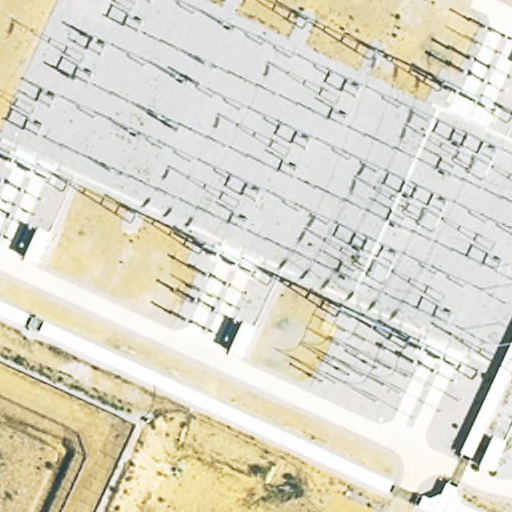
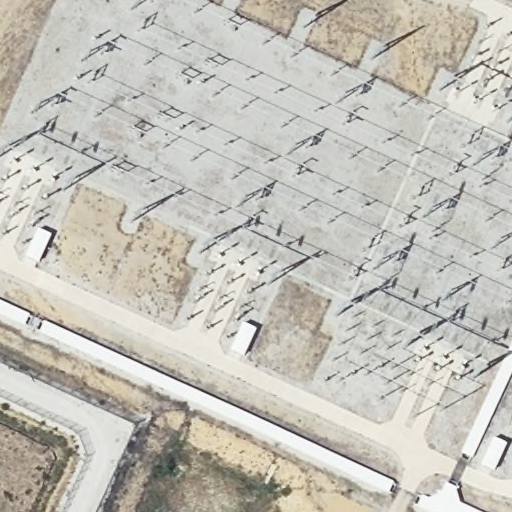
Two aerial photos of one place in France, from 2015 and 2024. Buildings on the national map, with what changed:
[]

